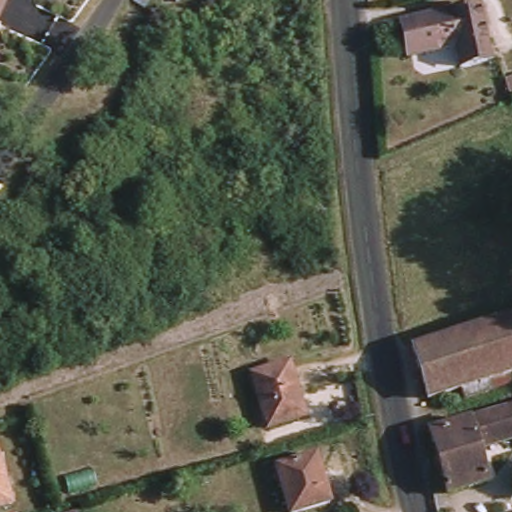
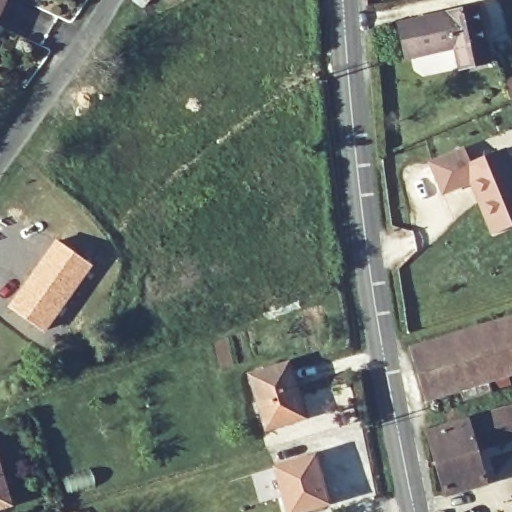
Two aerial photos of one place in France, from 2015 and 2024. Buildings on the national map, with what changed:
unchanged [(0,0),(2,0),(0,3),(0,0)]
unchanged [(479,5),(489,61),(456,66),(453,44),(404,53),(398,19),(479,5)]
new [(473,161),(506,148),(512,162),(512,226),(495,233),(482,200),(474,180),(446,192),(434,161),(467,148),(473,161)]
new [(55,238),(93,264),(44,333),(7,306),(55,238)]
unchanged [(486,373),(489,384),(463,393),(459,381),(424,392),(409,344),(512,312),(512,365),(486,373)]
unchanged [(285,365),(300,417),(266,426),(252,375),(285,365)]
unchanged [(478,446),(488,482),(448,494),(429,431),(512,407),(512,437),(478,446)]
unchanged [(274,466),(311,456),(323,503),(288,512),(286,512),(274,466)]
unchanged [(0,472),(10,512),(0,512),(0,472)]

